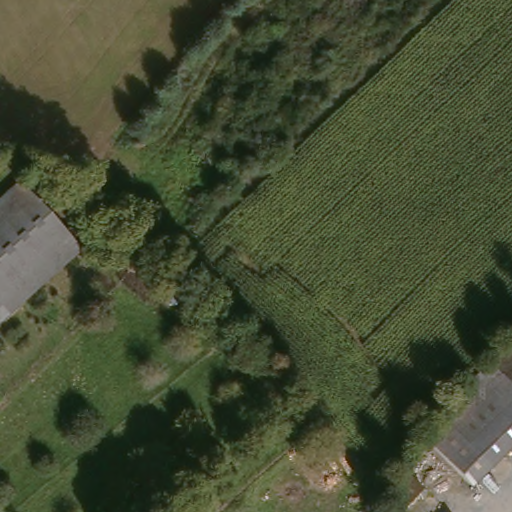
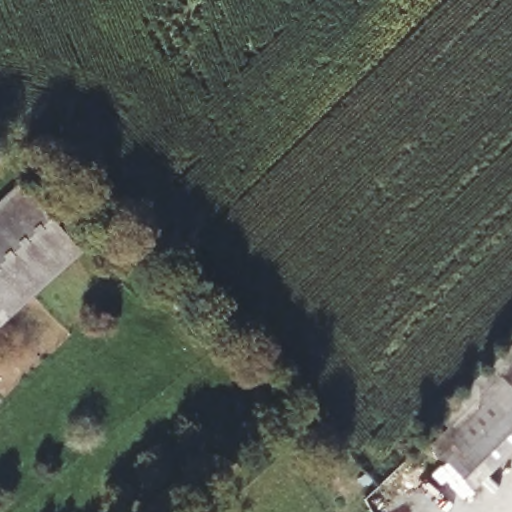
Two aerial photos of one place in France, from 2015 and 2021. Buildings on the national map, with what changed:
unchanged [(0,326),(0,203),(22,183),(83,251),(0,326)]
unchanged [(497,375),(512,361),(512,390),(507,385),(497,375)]
unchanged [(512,464),(480,496),(438,453),(507,385),(512,390),(512,464)]

